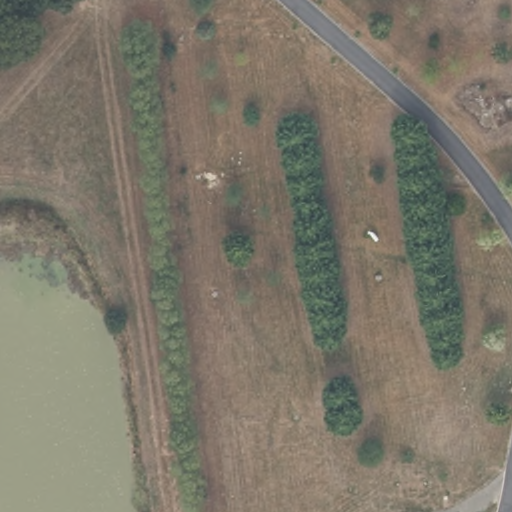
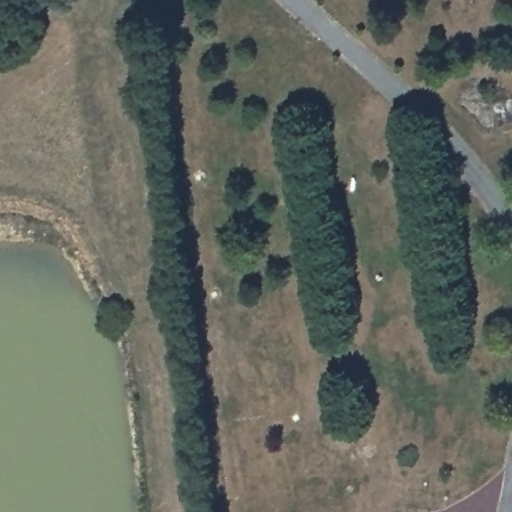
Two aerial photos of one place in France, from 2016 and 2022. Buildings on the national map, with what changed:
[]

